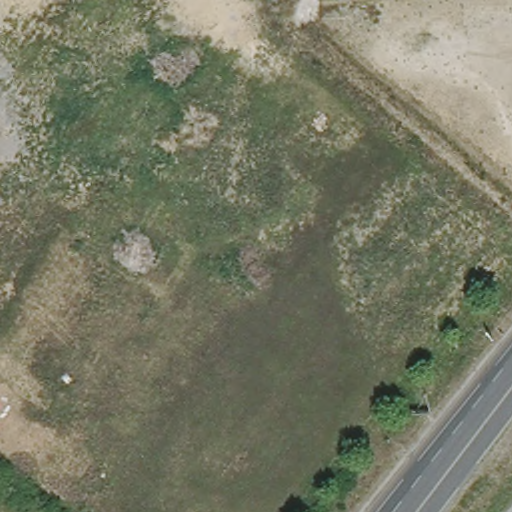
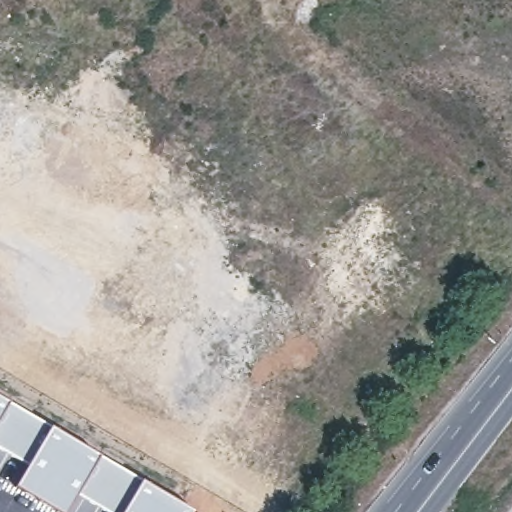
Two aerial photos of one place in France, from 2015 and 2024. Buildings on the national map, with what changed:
new [(99,510),(97,512),(59,512),(15,487),(27,465),(8,455),(0,469),(0,396),(9,401),(49,425),(140,480),(195,512),(103,512),(99,510)]

